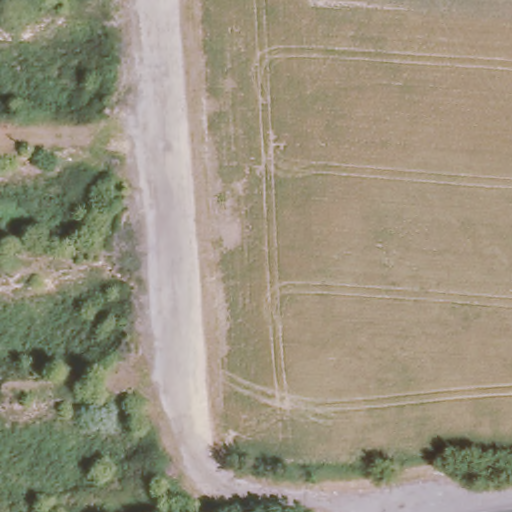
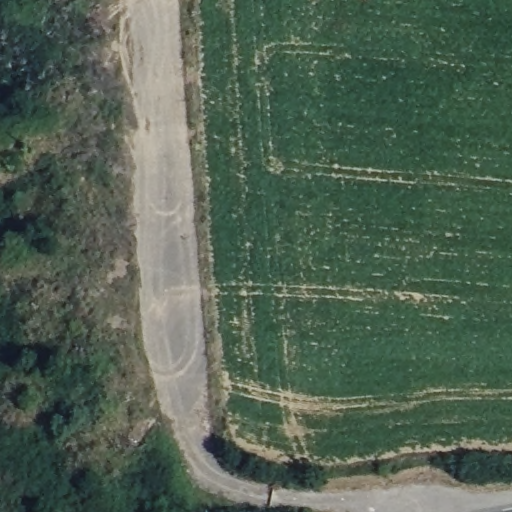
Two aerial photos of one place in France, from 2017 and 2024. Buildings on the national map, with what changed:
[]

